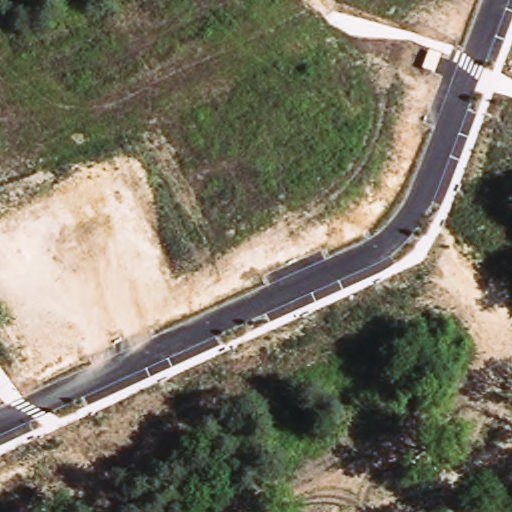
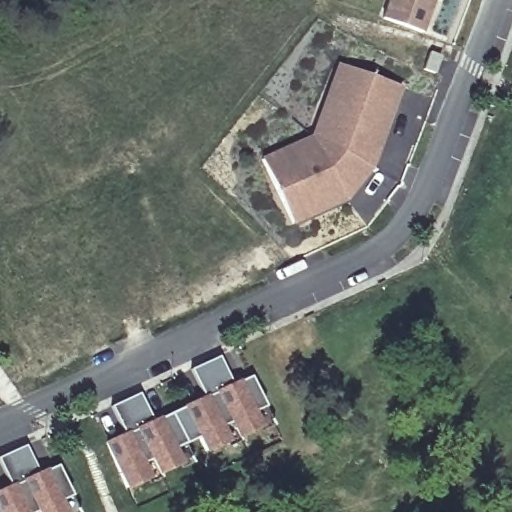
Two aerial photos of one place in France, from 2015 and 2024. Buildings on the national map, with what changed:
unchanged [(382,18),(388,0),(434,0),(423,33),(382,18)]
new [(351,195),(292,225),(262,157),(312,134),(339,63),(403,87),(373,167),(351,195)]
new [(102,443),(122,433),(110,406),(139,394),(151,420),(202,396),(190,370),(218,357),(229,383),(249,377),(263,407),(270,426),(259,429),(201,454),(194,438),(183,443),(189,460),(180,464),(123,491),(102,443)]
new [(0,465),(0,457),(25,446),(37,472),(56,465),(69,496),(77,512),(0,512),(0,490),(9,485),(0,465)]

